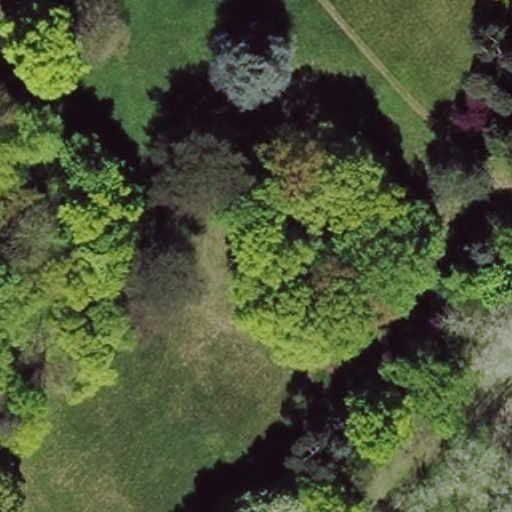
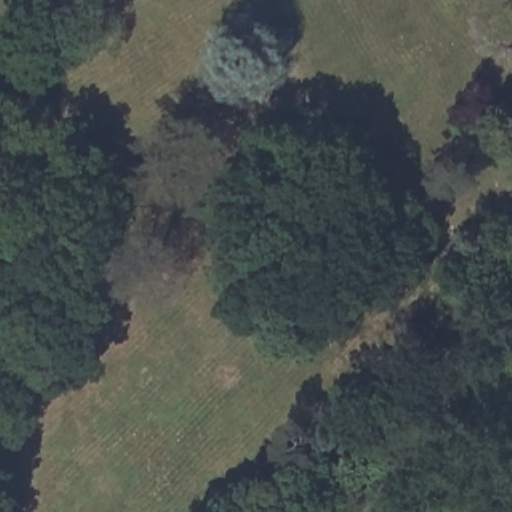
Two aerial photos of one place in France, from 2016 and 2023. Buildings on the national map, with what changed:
[]

